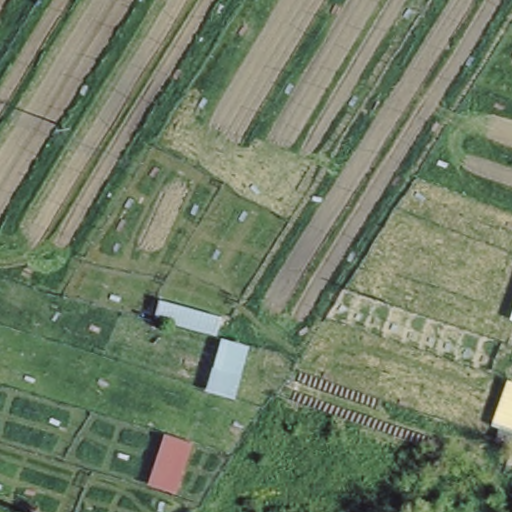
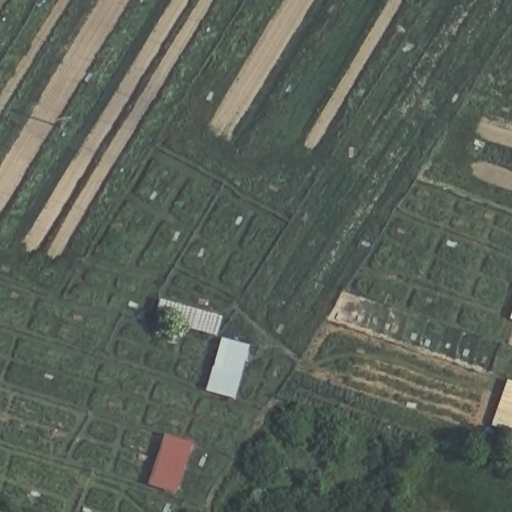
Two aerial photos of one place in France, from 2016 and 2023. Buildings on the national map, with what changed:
unchanged [(154,319),(156,300),(220,316),(215,335),(154,319)]
unchanged [(220,339),(251,348),(234,401),(205,392),(220,339)]
unchanged [(493,439),(512,395),(512,445),(493,439)]
unchanged [(148,484),(163,436),(189,445),(173,493),(148,484)]

